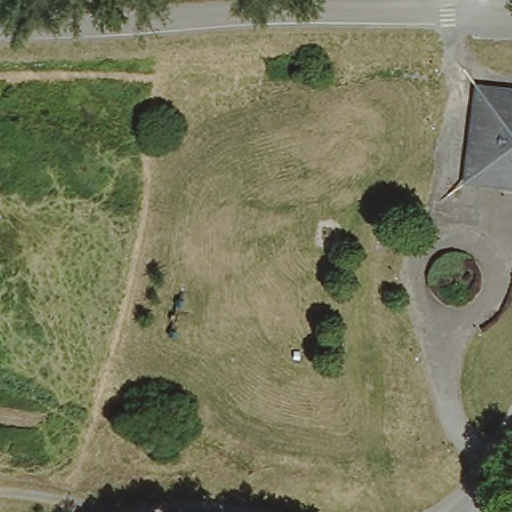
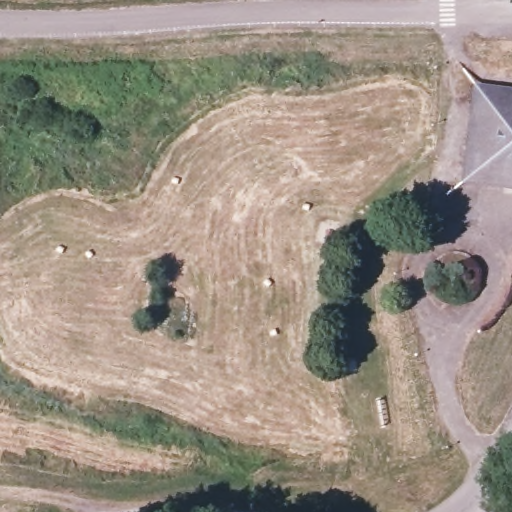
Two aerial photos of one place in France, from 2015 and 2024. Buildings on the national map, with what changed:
unchanged [(460,180),(470,90),(512,95),(512,186),(460,180)]

